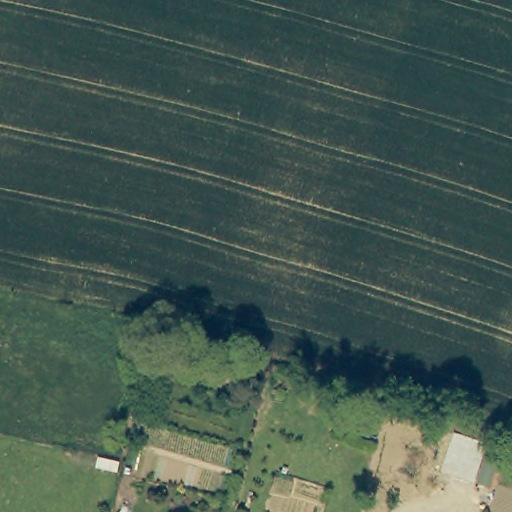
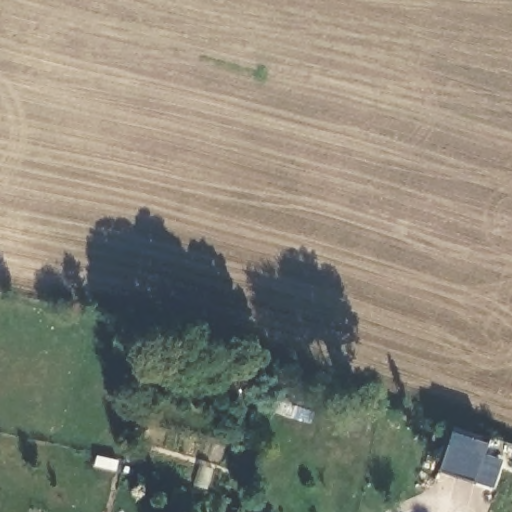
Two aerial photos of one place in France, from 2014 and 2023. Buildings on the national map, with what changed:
unchanged [(372,427),(340,419),(344,405),(375,414),(372,427)]
new [(453,435),(490,448),(483,467),(495,470),(488,488),(476,483),(439,471),(453,435)]

